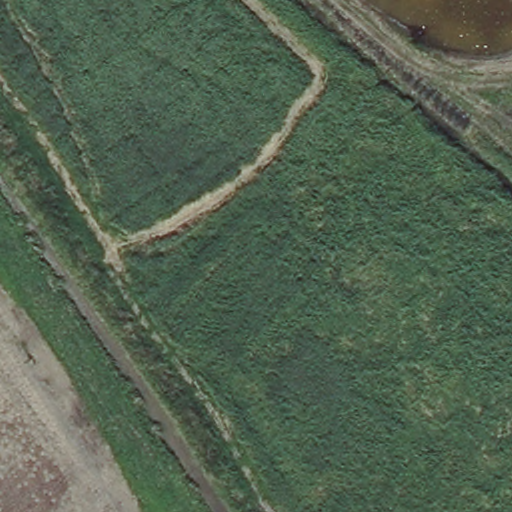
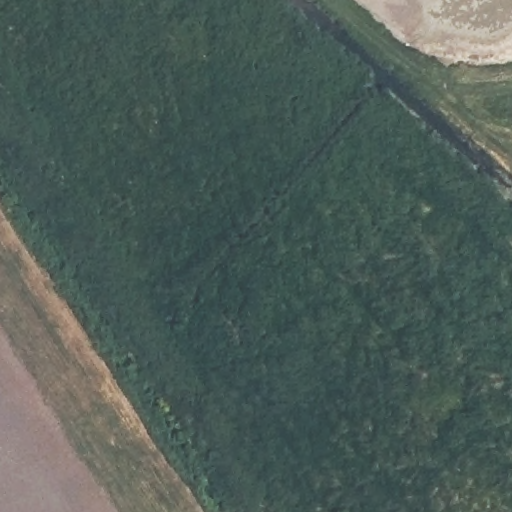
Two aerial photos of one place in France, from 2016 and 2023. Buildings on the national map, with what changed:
[]

